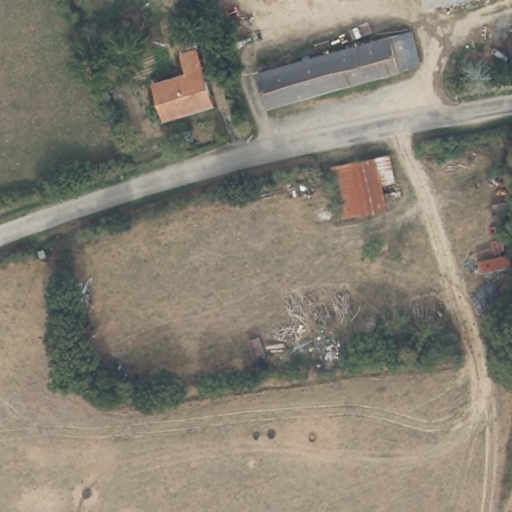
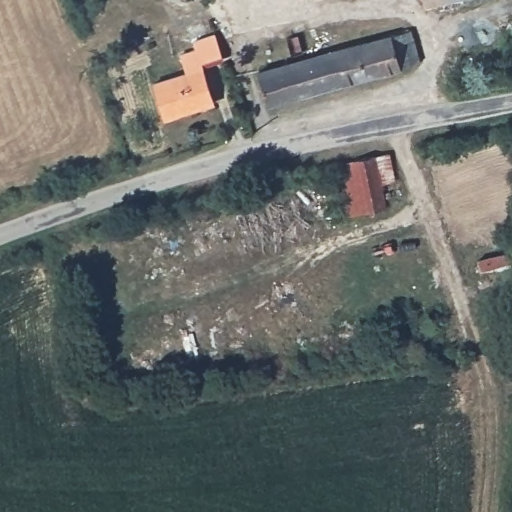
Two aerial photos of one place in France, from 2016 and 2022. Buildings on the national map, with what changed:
unchanged [(422,0),(478,0),(426,12),(422,0)]
unchanged [(360,43),(410,29),(421,62),(370,76),(360,43)]
unchanged [(303,59),(360,43),(370,76),(305,95),(293,61),(303,59)]
unchanged [(171,121),(160,88),(191,77),(184,59),(202,53),(218,105),(171,121)]
unchanged [(293,61),(305,95),(272,105),(262,70),(293,61)]
unchanged [(365,211),(354,162),(376,157),(392,155),(396,180),(381,182),(387,207),(365,211)]
unchanged [(354,162),(365,211),(345,216),(333,167),(354,162)]

